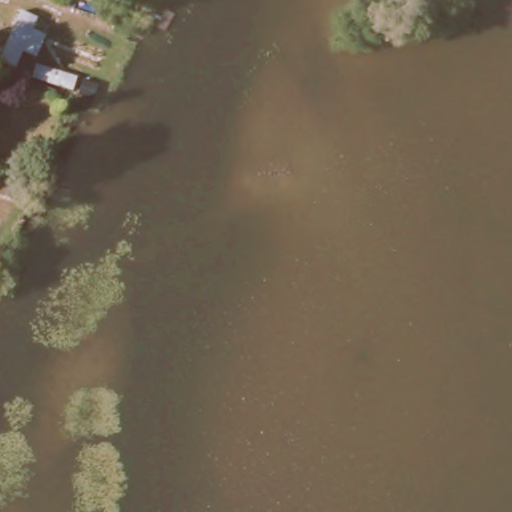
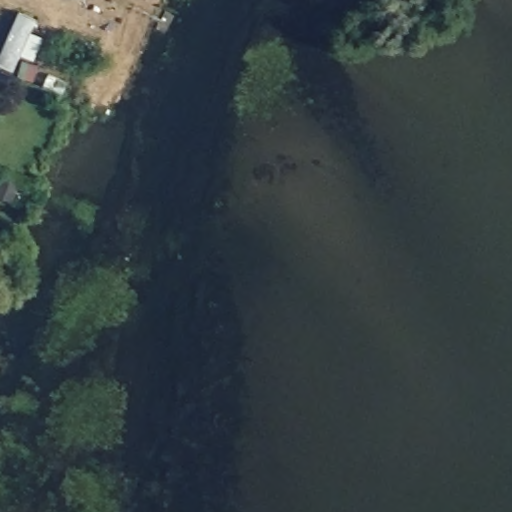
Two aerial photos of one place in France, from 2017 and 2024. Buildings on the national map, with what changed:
unchanged [(72,21),(90,27),(85,41),(67,35),(72,21)]
unchanged [(5,202),(0,200),(0,177),(13,182),(5,202)]

